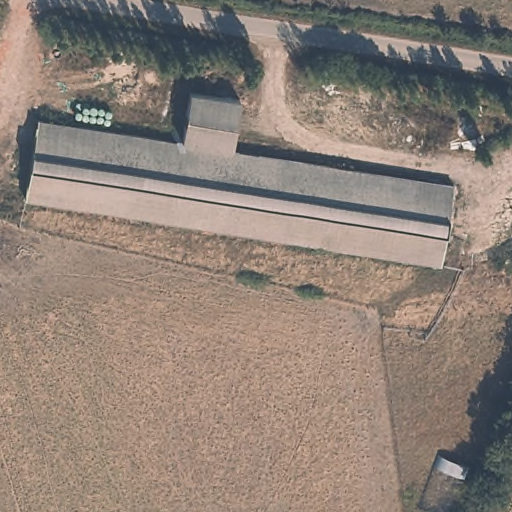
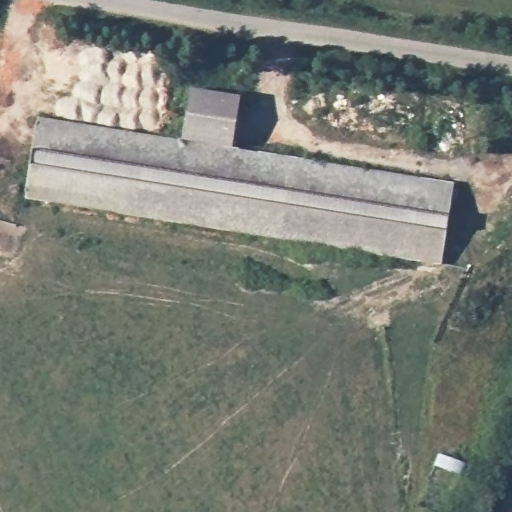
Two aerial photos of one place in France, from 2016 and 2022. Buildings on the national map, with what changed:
unchanged [(191,94),(239,102),(231,153),(183,146),(191,94)]
unchanged [(451,187),(438,270),(27,202),(41,123),(183,146),(231,153),(451,187)]

